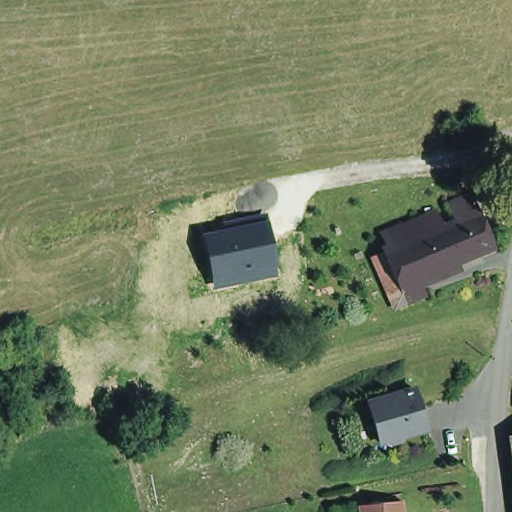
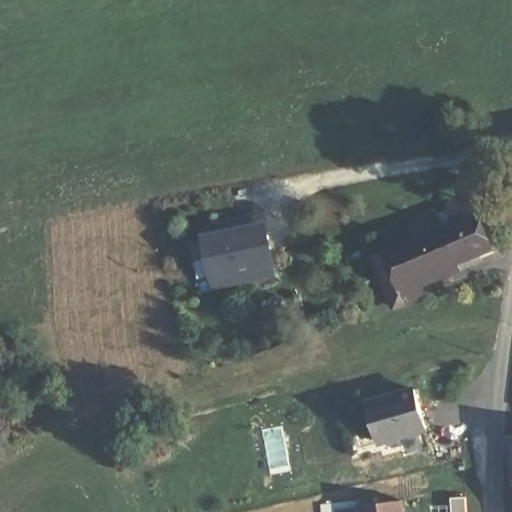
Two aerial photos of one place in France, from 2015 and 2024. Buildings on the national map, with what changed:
unchanged [(430,206),(437,223),(453,217),(446,199),(470,190),(492,241),(411,275),(418,291),(393,301),(373,253),(388,247),(379,226),(430,206)]
unchanged [(223,229),(222,221),(266,211),(268,220),(278,274),(212,287),(201,234),(223,229)]
unchanged [(378,440),(375,441),(363,404),(410,389),(421,427),(401,433),(395,440),(385,443),(378,440)]
unchanged [(512,451),(512,476),(508,451),(512,451)]
unchanged [(401,497),(403,512),(361,512),(360,501),(401,497)]

